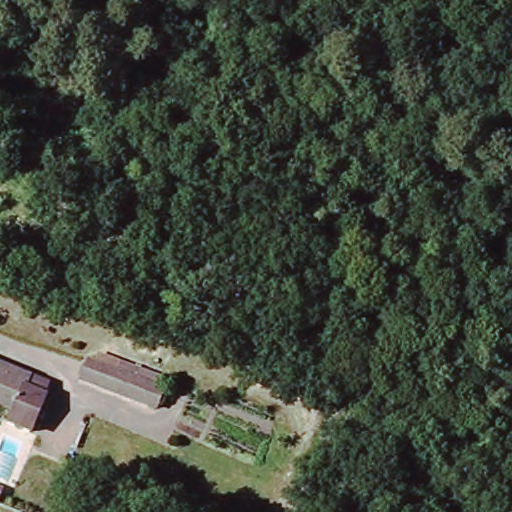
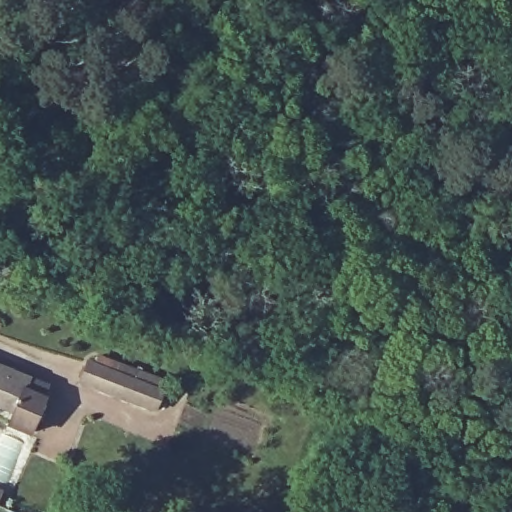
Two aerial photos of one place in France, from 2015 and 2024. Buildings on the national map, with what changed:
unchanged [(75,377),(84,357),(157,387),(149,408),(75,377)]
unchanged [(0,404),(0,368),(22,377),(19,387),(39,394),(27,427),(7,419),(11,408),(0,404)]

